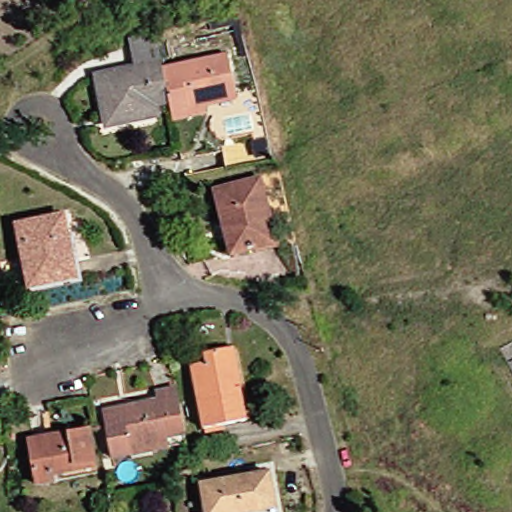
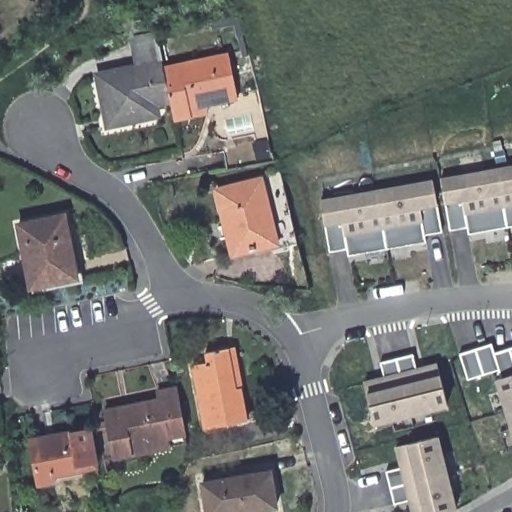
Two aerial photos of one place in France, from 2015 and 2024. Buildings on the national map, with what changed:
unchanged [(162,31),(169,65),(176,102),(165,104),(166,116),(109,126),(99,69),(138,62),(134,36),(162,31)]
unchanged [(176,102),(169,65),(231,54),(240,99),(194,107),(195,115),(179,119),(176,102)]
unchanged [(273,136),(277,158),(231,165),(227,145),(273,136)]
new [(466,229),(448,232),(444,204),(440,179),(512,165),(512,227),(467,234),(466,229)]
unchanged [(236,259),(219,192),(267,179),(284,246),(236,259)]
new [(425,236),(426,243),(347,255),(346,250),(328,253),(324,227),(320,200),(433,180),(441,233),(425,236)]
unchanged [(82,282),(33,293),(19,229),(68,218),(82,282)]
new [(494,353),(512,347),(512,433),(494,381),(501,379),(499,372),(467,381),(459,354),(491,344),(494,353)]
unchanged [(246,388),(252,415),(208,424),(196,365),(212,362),(210,352),(233,348),(240,389),(246,388)]
new [(394,431),(392,423),(374,427),(366,393),(363,382),(383,377),(379,362),(412,354),(416,368),(436,364),(439,374),(448,409),(430,413),(432,422),(394,431)]
unchanged [(193,438),(174,442),(176,453),(117,463),(107,413),(162,403),(161,393),(183,388),(193,438)]
unchanged [(104,472),(62,479),(62,485),(43,489),(35,442),(97,431),(104,472)]
new [(439,438),(456,511),(452,512),(410,512),(407,502),(394,504),(386,472),(399,469),(394,448),(439,438)]
unchanged [(281,510),(270,512),(211,512),(206,484),(275,474),(281,510)]

